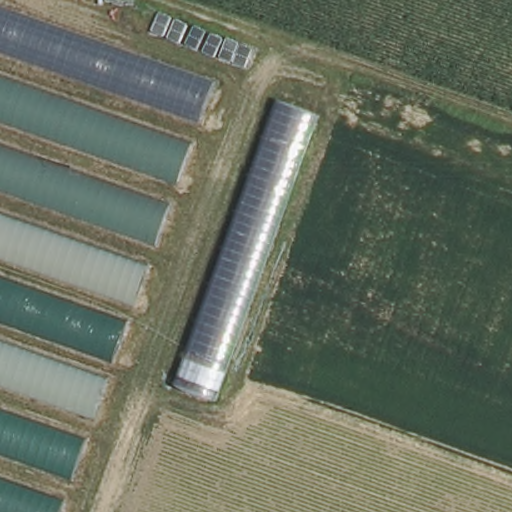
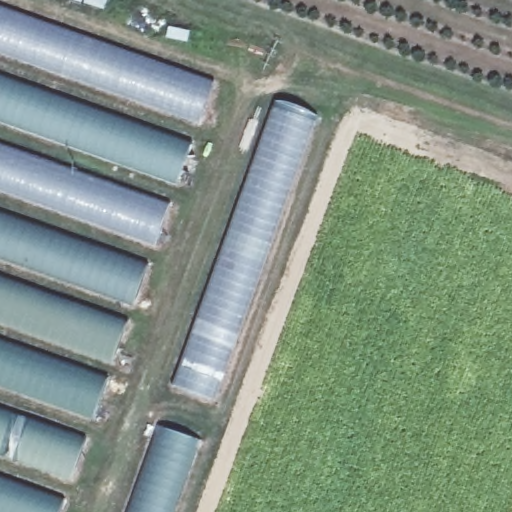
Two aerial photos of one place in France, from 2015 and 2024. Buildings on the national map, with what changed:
unchanged [(0,6),(215,84),(65,512),(0,512),(0,6)]
unchanged [(217,403),(175,391),(277,101),(322,115),(217,403)]
new [(155,424),(200,439),(173,512),(124,512),(155,424)]

